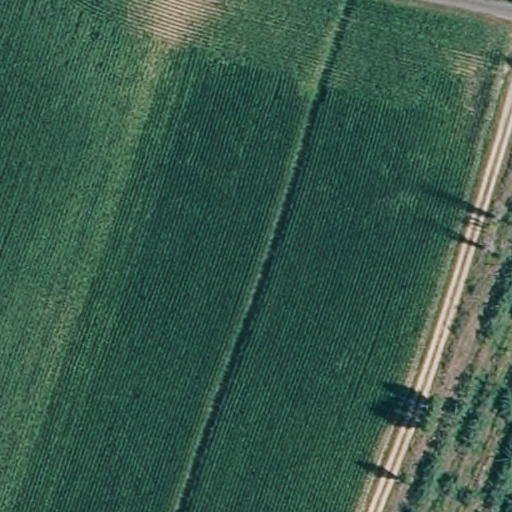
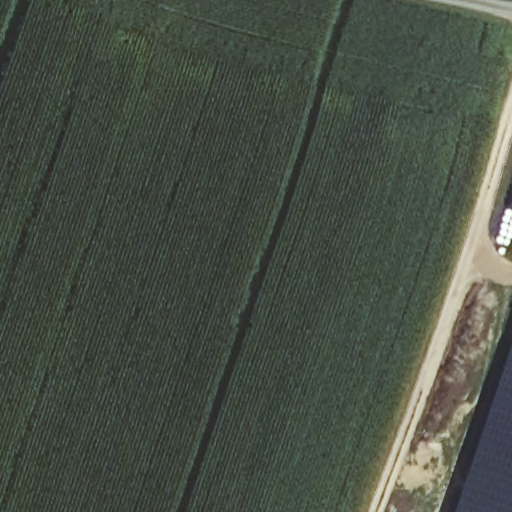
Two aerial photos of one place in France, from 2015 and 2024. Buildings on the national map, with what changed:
new [(512,512),(464,512),(512,370),(512,512)]

